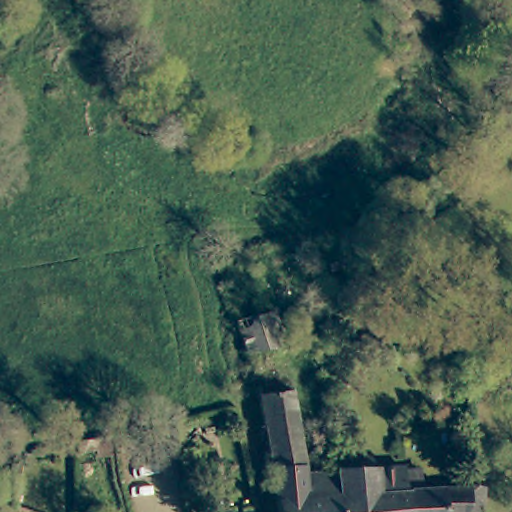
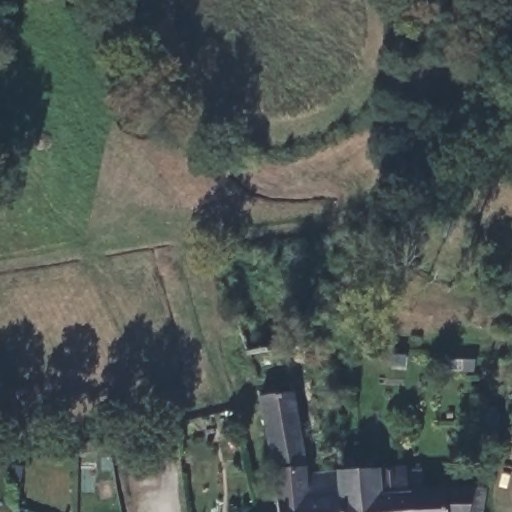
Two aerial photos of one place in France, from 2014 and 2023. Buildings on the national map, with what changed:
unchanged [(246,357),(240,339),(235,323),(274,311),(283,346),(265,351),(267,358),(265,359),(262,359),(260,358),(263,371),(251,374),(246,357)]
unchanged [(304,460),(305,475),(338,471),(343,512),(278,512),(277,494),(272,462),(255,389),(255,387),(289,382),(302,453),(304,460)]
unchanged [(114,437),(117,450),(85,453),(84,440),(114,437)]
unchanged [(484,499),(483,512),(343,512),(338,471),(337,458),(353,458),(353,471),(403,467),(404,471),(421,470),(422,491),(472,488),(485,489),(484,499)]
unchanged [(15,471),(16,464),(26,465),(25,473),(23,480),(13,478),(15,471)]

